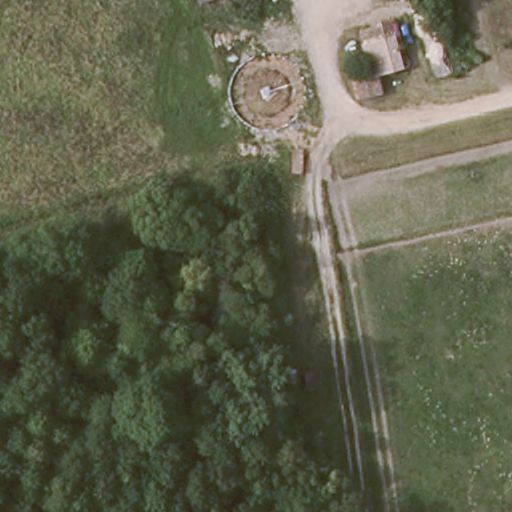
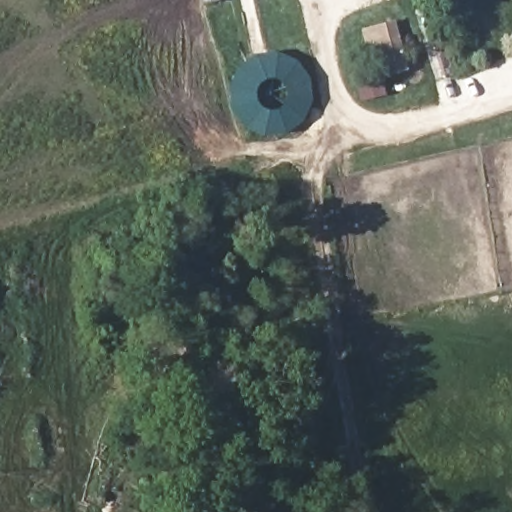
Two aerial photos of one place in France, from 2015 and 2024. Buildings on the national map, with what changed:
unchanged [(224,2),(202,8),(200,0),(224,0),(224,2)]
unchanged [(438,82),(419,14),(437,8),(457,76),(438,82)]
unchanged [(382,71),(368,24),(392,18),(407,64),(382,71)]
new [(259,134),(241,127),(227,109),(225,86),(232,66),(252,53),(274,52),(293,59),(306,78),(308,99),(297,120),(282,131),(259,134)]
unchanged [(364,96),(356,74),(369,68),(376,91),(364,96)]

